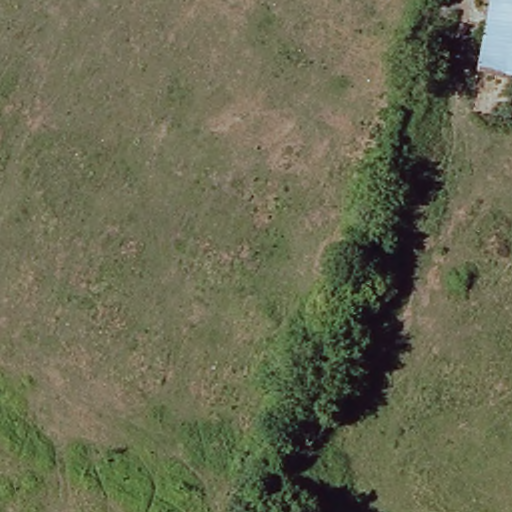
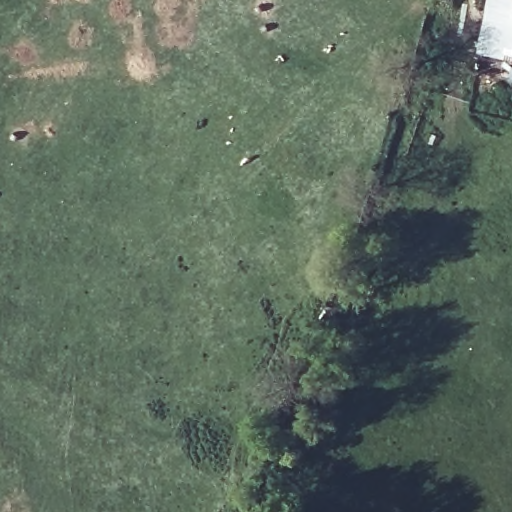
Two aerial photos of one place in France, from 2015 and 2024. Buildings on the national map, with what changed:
unchanged [(492,0),(512,0),(512,80),(475,73),(492,0)]

